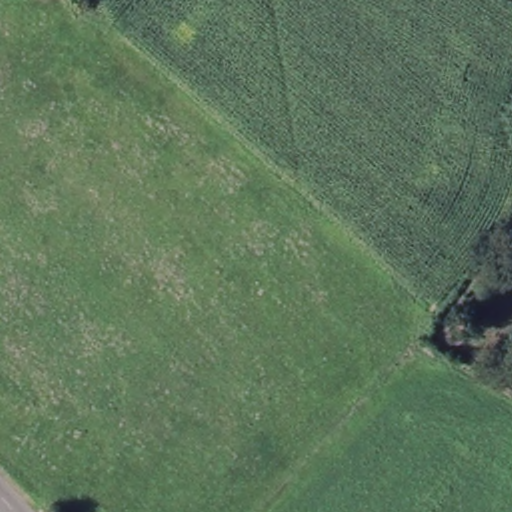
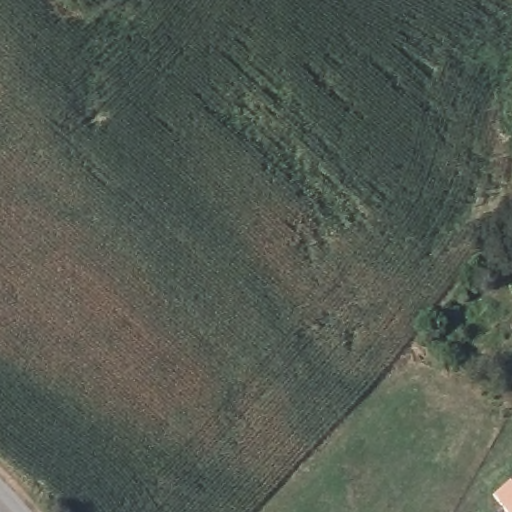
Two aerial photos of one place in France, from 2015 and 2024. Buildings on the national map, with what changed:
new [(512,512),(506,512),(495,497),(512,484),(512,512)]

